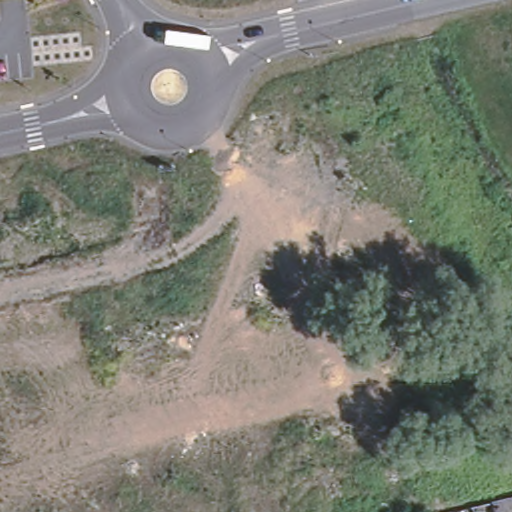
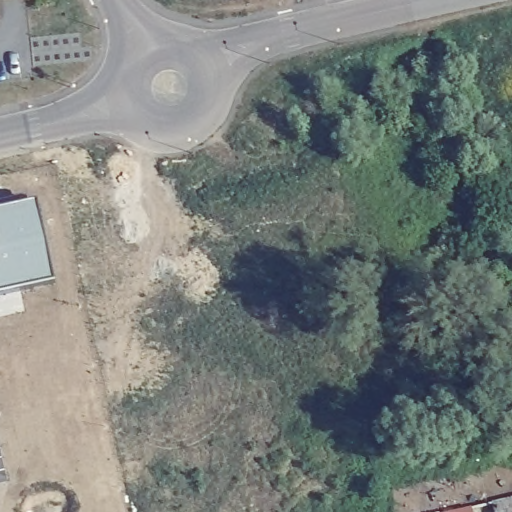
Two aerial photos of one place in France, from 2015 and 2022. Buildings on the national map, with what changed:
new [(32,204),(45,282),(0,291),(0,210),(32,204)]
new [(512,512),(496,512),(492,496),(512,492),(512,512)]

